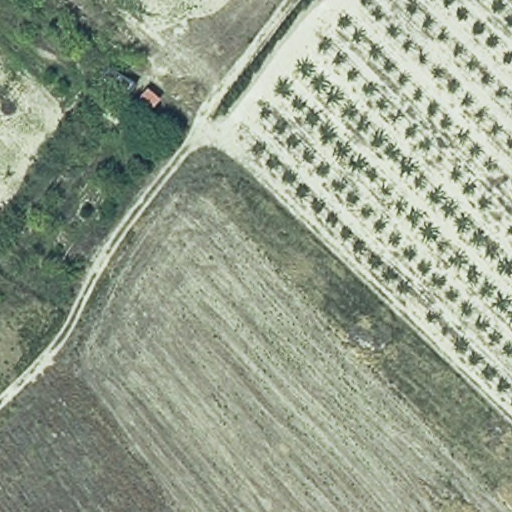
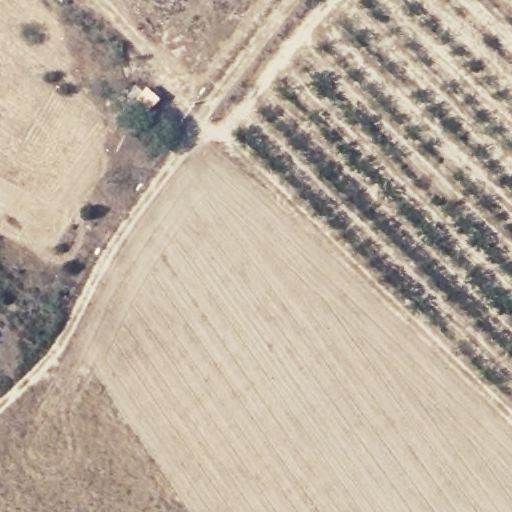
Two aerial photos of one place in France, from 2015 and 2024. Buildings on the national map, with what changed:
unchanged [(132,98),(147,83),(161,98),(147,111),(132,98)]

